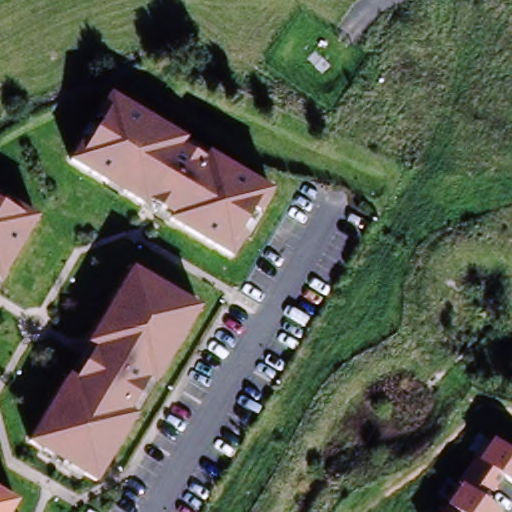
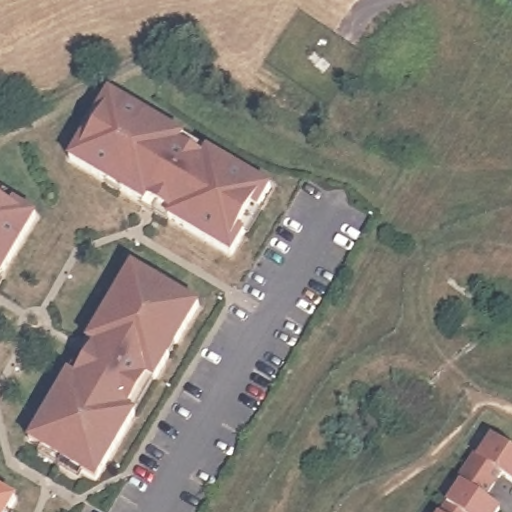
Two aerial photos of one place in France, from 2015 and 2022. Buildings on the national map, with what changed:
unchanged [(204,154),(209,147),(271,185),(258,207),(253,204),(240,225),(245,228),(232,251),(169,213),(172,208),(149,194),(145,200),(121,186),(124,181),(112,174),(109,178),(70,155),(84,132),(89,135),(101,114),(96,111),(110,89),(149,112),(144,119),(155,126),(160,118),(184,133),(180,140),(204,154)]
unchanged [(19,198),(41,211),(4,274),(0,272),(0,193),(16,203),(19,198)]
unchanged [(162,351),(169,356),(154,380),(148,376),(128,409),(135,413),(95,480),(29,440),(69,374),(75,378),(95,345),(88,341),(102,317),(106,320),(114,308),(109,305),(133,266),(155,280),(153,285),(173,297),(177,292),(199,306),(176,345),(169,340),(162,351)]
unchanged [(512,451),(512,480),(503,475),(487,500),(502,511),(501,512),(441,512),(494,438),(512,451)]
unchanged [(6,512),(0,512),(0,486),(16,495),(6,512)]

